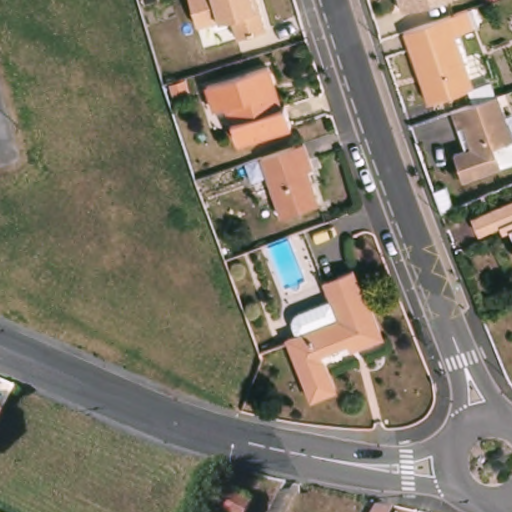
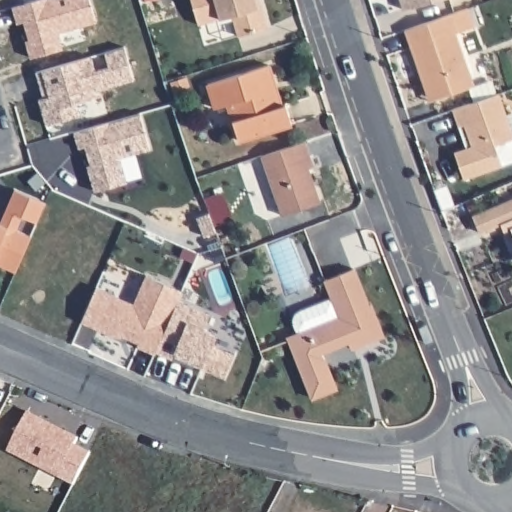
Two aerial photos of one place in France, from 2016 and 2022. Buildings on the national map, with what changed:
new [(58,33),(63,49),(30,59),(25,41),(29,40),(23,22),(16,24),(11,7),(37,0),(89,0),(96,22),(58,33)]
unchanged [(260,0),(267,29),(238,38),(230,15),(199,26),(189,0),(260,0)]
unchanged [(399,0),(456,0),(404,15),(399,0)]
unchanged [(421,77),(406,32),(468,11),(475,30),(456,37),(473,88),(437,101),(431,103),(421,77)]
new [(100,90),(101,96),(76,103),(80,115),(45,125),(38,100),(43,98),(35,72),(91,57),(95,71),(108,67),(104,52),(124,47),(133,80),(100,90)]
unchanged [(270,67),(276,86),(271,88),(278,111),(286,107),(292,127),(239,142),(228,106),(216,110),(208,85),(270,67)]
unchanged [(176,99),(171,85),(181,82),(185,96),(176,99)]
unchanged [(462,183),(453,157),(471,150),(474,142),(468,127),(457,131),(451,114),(473,106),(470,97),(491,89),(495,99),(497,98),(512,141),(512,163),(500,168),(462,183)]
new [(149,150),(120,157),(126,182),(94,192),(86,166),(90,165),(85,147),(78,149),(74,132),(139,114),(149,150)]
unchanged [(311,162),(305,164),(321,205),(282,219),(260,159),(304,145),(311,162)]
new [(46,203),(37,224),(21,217),(16,231),(31,237),(16,273),(0,266),(0,223),(15,190),(46,203)]
unchanged [(486,215),(512,204),(512,239),(507,226),(493,232),(480,238),(472,221),(486,215)]
new [(208,214),(215,232),(203,237),(196,218),(208,214)]
unchanged [(353,345),(327,355),(341,392),(316,401),(293,342),(302,338),(298,327),(300,319),(305,316),(336,304),(328,285),(357,273),(370,311),(374,308),(386,341),(366,349),(357,352),(353,345)]
new [(146,276),(182,291),(178,300),(156,351),(155,354),(137,346),(139,343),(121,335),(120,338),(96,328),(81,322),(96,288),(110,294),(134,304),(146,276)]
new [(178,300),(210,315),(204,328),(217,334),(212,344),(235,354),(224,377),(173,355),(172,358),(156,351),(178,300)]
unchanged [(0,416),(0,414),(1,414),(0,416)]
new [(27,414),(78,440),(75,447),(90,455),(74,487),(8,453),(27,414)]
demolished [(224,484),(255,499),(251,507),(255,509),(253,512),(210,512),(224,484)]

